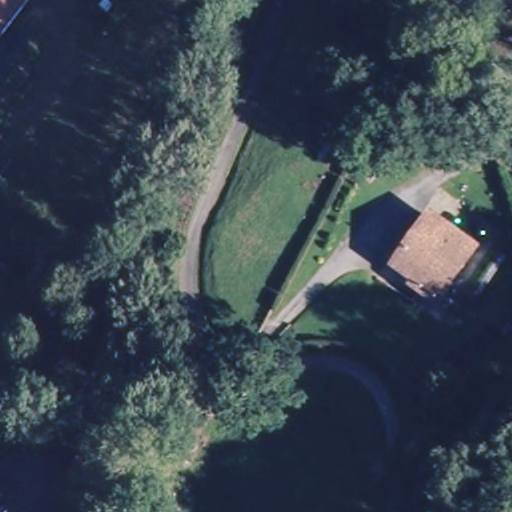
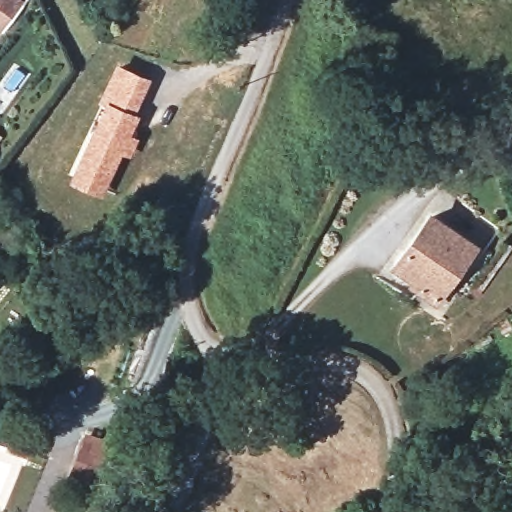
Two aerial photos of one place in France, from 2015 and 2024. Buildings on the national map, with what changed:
unchanged [(1,32),(0,32),(0,0),(17,0),(23,5),(1,32)]
new [(103,100),(99,99),(118,60),(153,76),(138,111),(141,113),(133,133),(140,137),(130,156),(124,154),(103,194),(69,176),(103,100)]
unchanged [(416,278),(395,264),(431,214),(475,246),(436,300),(412,283),(416,278)]
unchanged [(73,472),(81,451),(89,433),(115,442),(107,464),(99,483),(73,472)]

